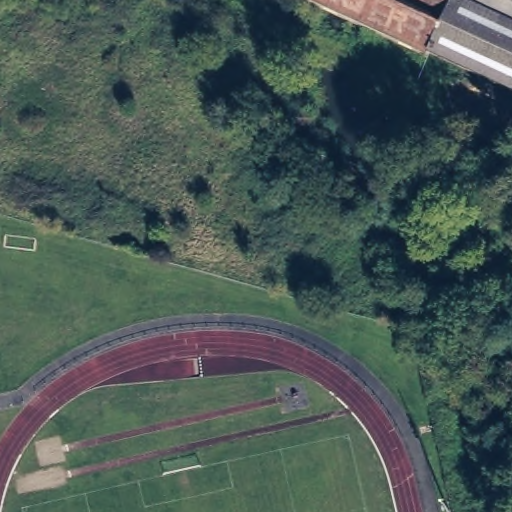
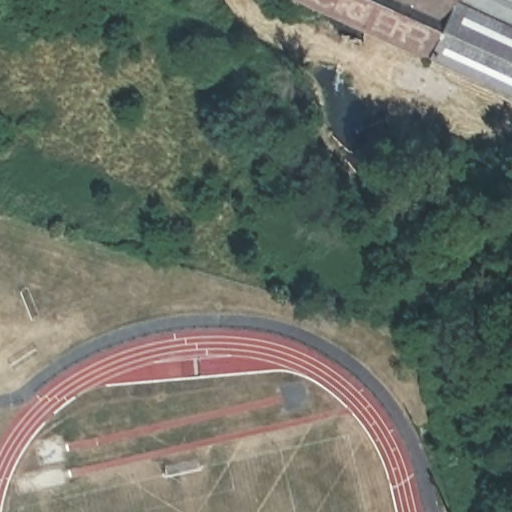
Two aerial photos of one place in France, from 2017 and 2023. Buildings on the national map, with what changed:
unchanged [(512,0),(512,91),(432,54),(430,58),(385,37),(370,30),(307,0),(512,0)]

